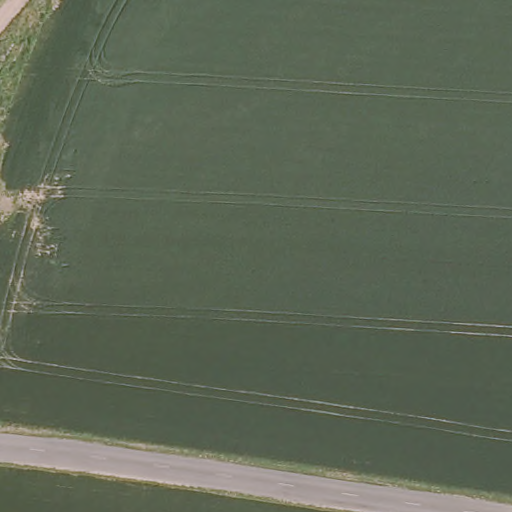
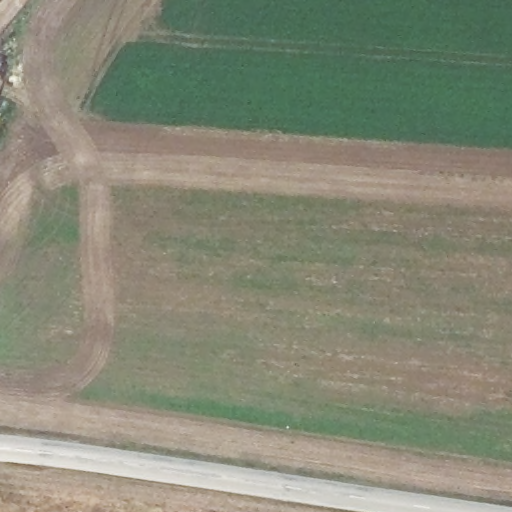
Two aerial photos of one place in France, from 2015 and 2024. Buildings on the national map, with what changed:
[]

